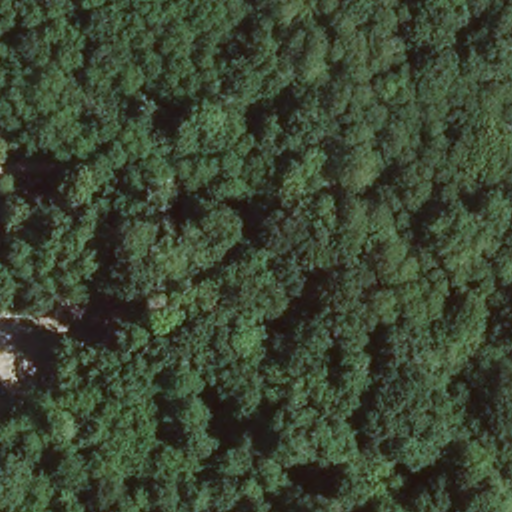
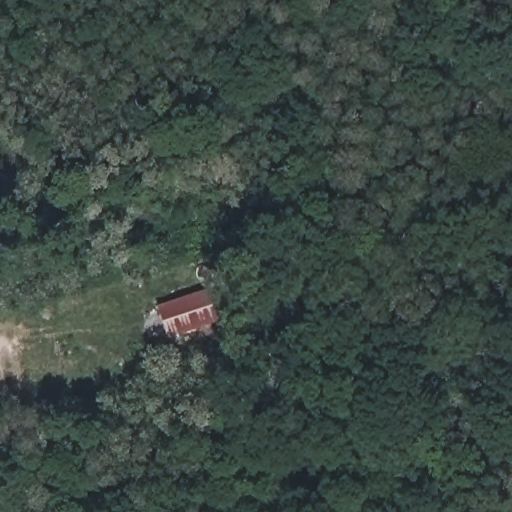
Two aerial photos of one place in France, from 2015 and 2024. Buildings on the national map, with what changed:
new [(208,288),(219,322),(167,338),(157,306),(208,288)]

